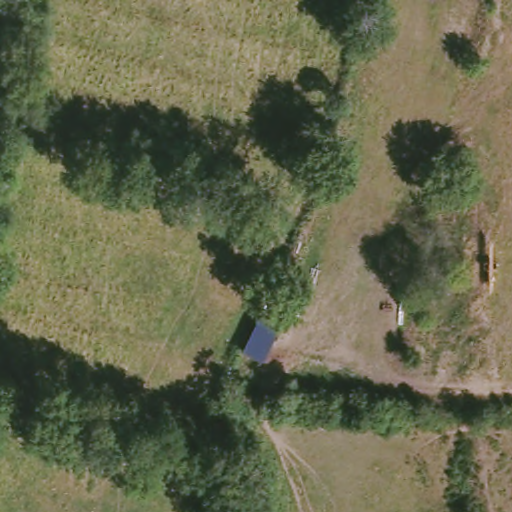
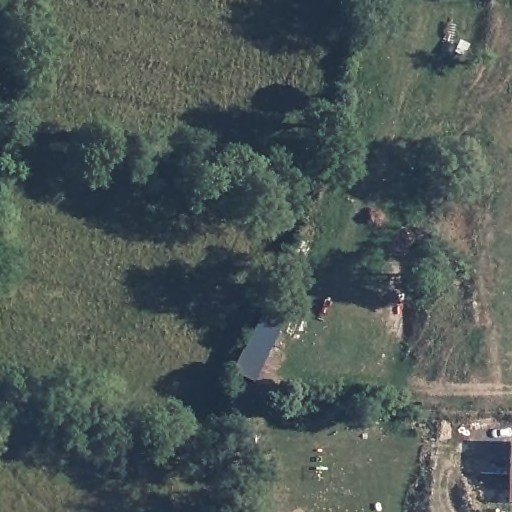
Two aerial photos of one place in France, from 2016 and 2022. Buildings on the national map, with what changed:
new [(507,502),(510,441),(512,442),(512,502),(507,502)]

